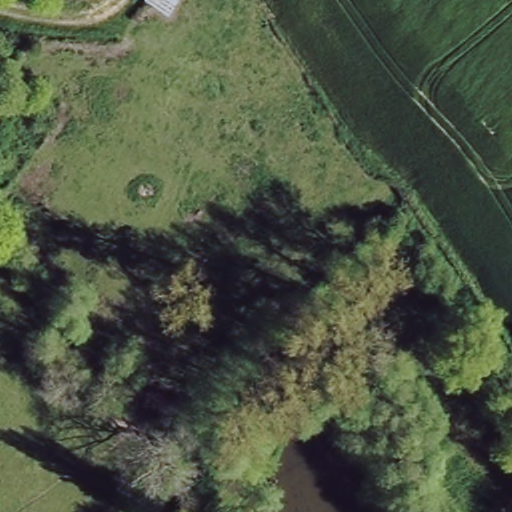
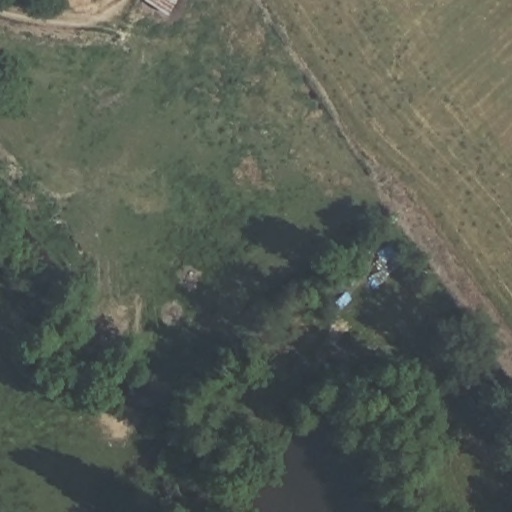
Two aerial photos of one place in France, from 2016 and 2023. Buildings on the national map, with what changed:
unchanged [(166,13),(145,0),(175,0),(166,13)]

